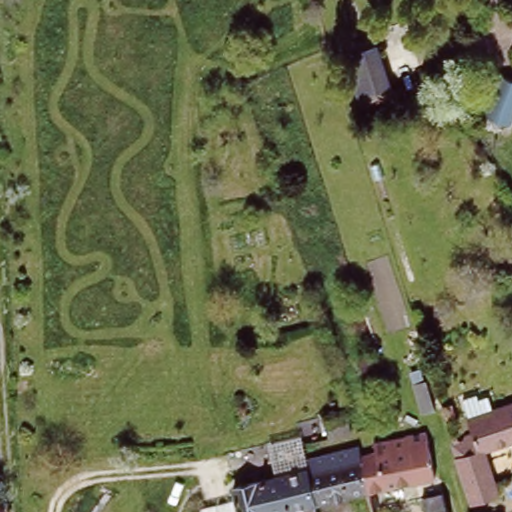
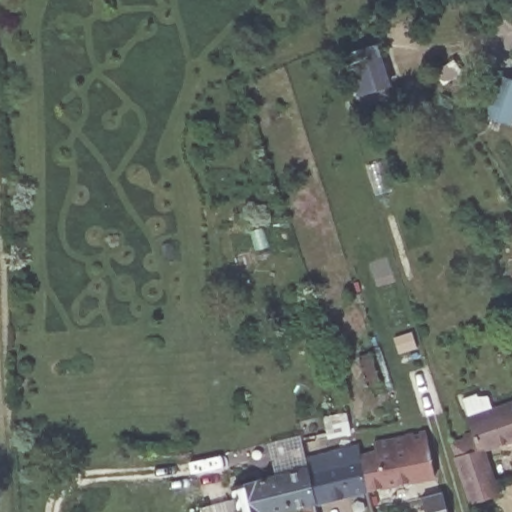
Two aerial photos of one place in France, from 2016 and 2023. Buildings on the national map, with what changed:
unchanged [(374,44),(386,83),(356,92),(345,53),(374,44)]
unchanged [(477,113),(497,73),(512,78),(512,125),(511,126),(477,113)]
unchanged [(369,353),(381,385),(367,390),(356,358),(369,353)]
unchanged [(409,373),(423,369),(431,396),(417,401),(409,373)]
unchanged [(340,417),(345,439),(327,443),(322,421),(340,417)]
unchanged [(470,451),(480,448),(474,430),(512,419),(512,455),(490,462),(502,512),(474,512),(463,474),(458,454),(470,451)]
unchanged [(403,435),(404,440),(422,436),(428,462),(425,463),(430,483),(415,487),(413,480),(368,491),(358,456),(384,449),(381,440),(403,435)]
unchanged [(368,491),(317,503),(309,468),(331,462),(330,453),(355,447),(358,456),(368,491)]
unchanged [(317,503),(319,512),(302,512),(300,504),(268,512),(235,512),(229,484),(308,464),(309,468),(317,503)]
unchanged [(454,512),(427,512),(423,497),(448,491),(454,512)]

